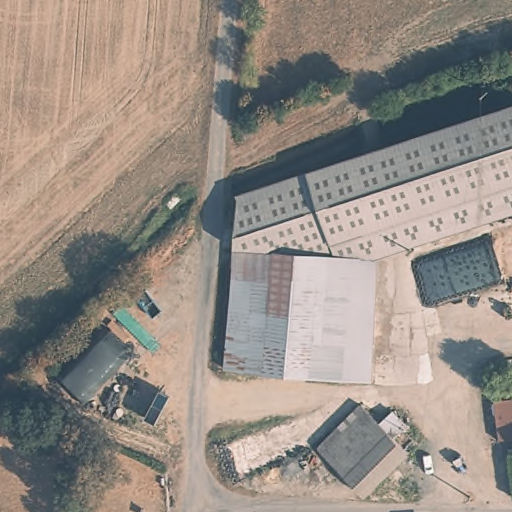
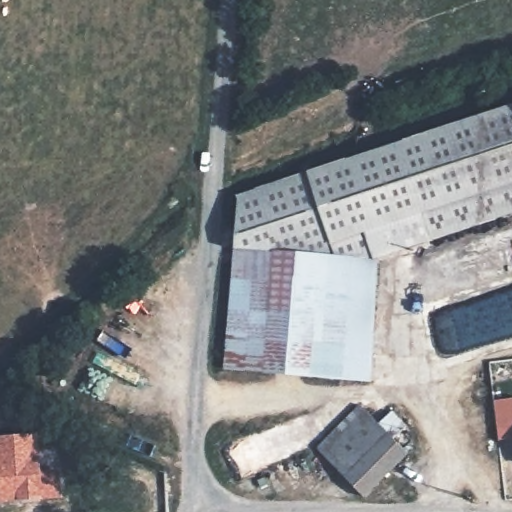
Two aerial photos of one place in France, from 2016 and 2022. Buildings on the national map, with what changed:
unchanged [(366,382),(224,371),(237,194),(270,180),(495,107),(512,102),(512,217),(375,263),(366,382)]
unchanged [(410,450),(361,496),(332,468),(314,450),(354,411),(366,404),(380,419),(391,408),(405,422),(395,433),(401,440),(410,450)]
new [(35,435),(37,453),(55,451),(59,496),(39,497),(39,501),(17,503),(17,499),(0,501),(0,438),(35,435)]

